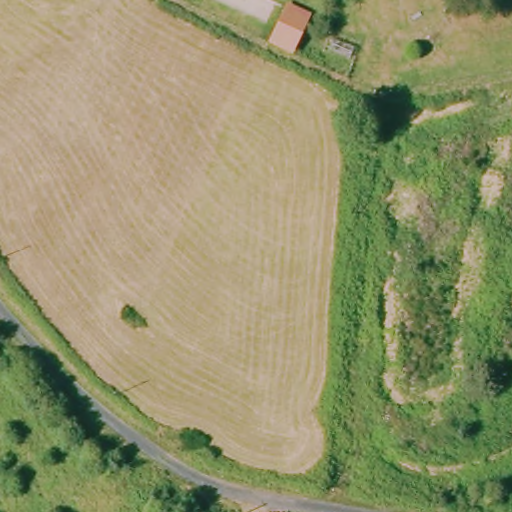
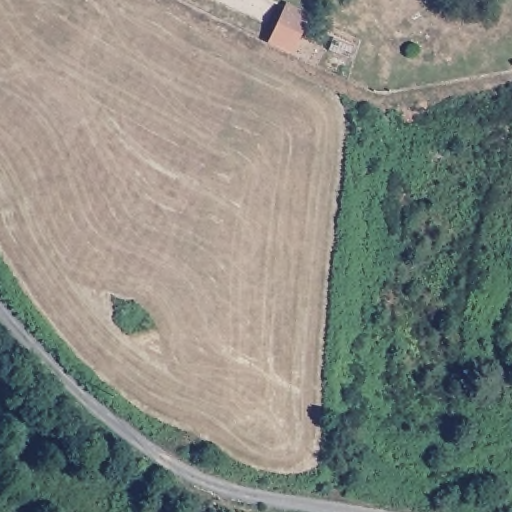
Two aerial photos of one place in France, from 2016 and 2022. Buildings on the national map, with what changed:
unchanged [(285,5),(311,15),(292,59),(265,47),(285,5)]

